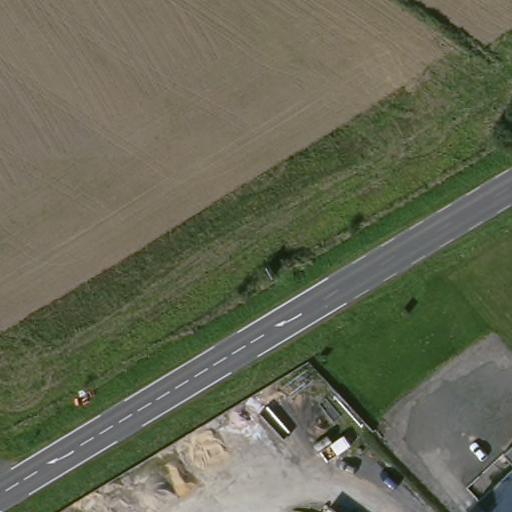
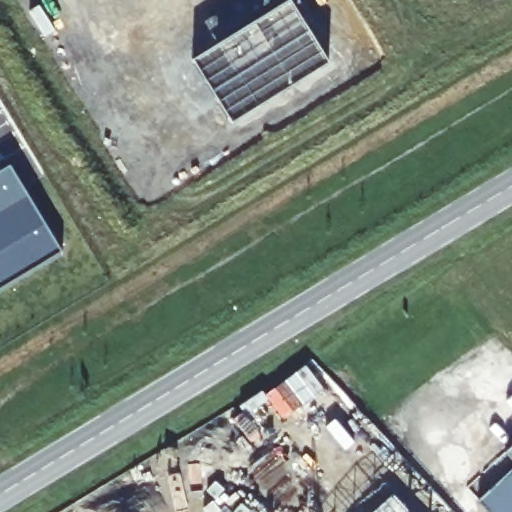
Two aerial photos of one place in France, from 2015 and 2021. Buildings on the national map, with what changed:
new [(286,1),(326,64),(232,123),(192,59),(286,1)]
new [(24,188),(62,252),(0,290),(0,171),(10,165),(24,188)]
unchanged [(506,449),(512,445),(512,456),(506,449)]
unchanged [(512,472),(512,512),(490,512),(478,498),(512,472)]
new [(408,512),(399,512),(403,507),(408,512)]

